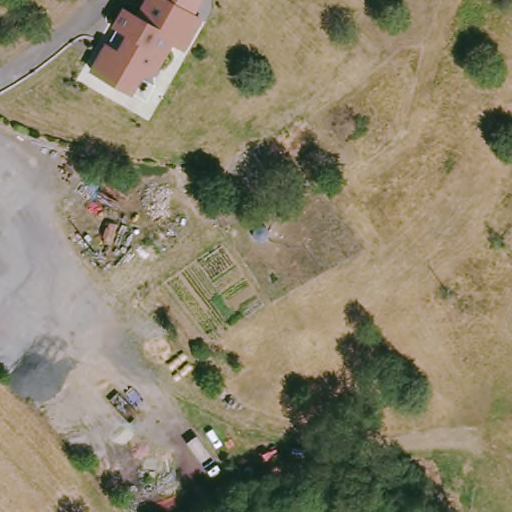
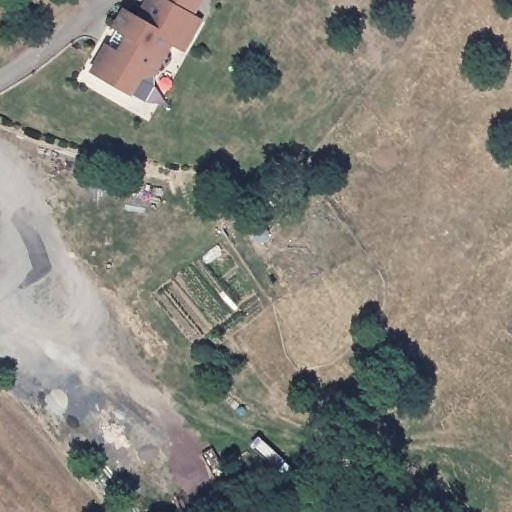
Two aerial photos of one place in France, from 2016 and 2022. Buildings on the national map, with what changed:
unchanged [(108,44),(120,51),(130,34),(117,25),(127,9),(140,16),(149,0),(170,0),(203,20),(185,50),(173,43),(155,73),(142,76),(132,93),(93,70),(108,44)]

